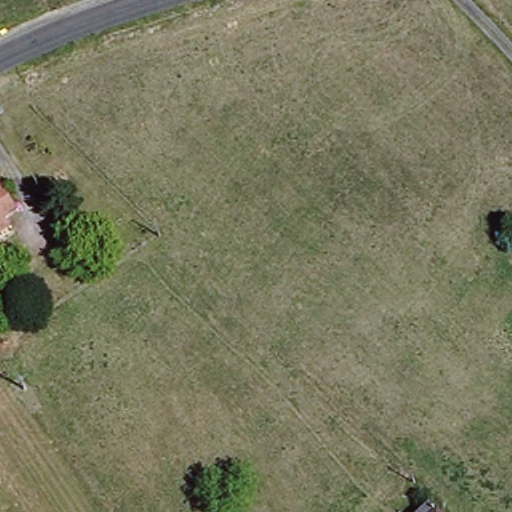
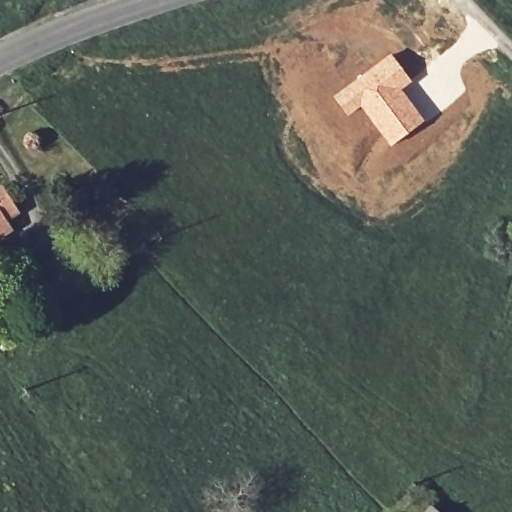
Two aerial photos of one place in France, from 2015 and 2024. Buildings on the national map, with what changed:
new [(392,53),(413,81),(403,89),(426,120),(392,146),(362,105),(349,115),(335,95),(392,53)]
unchanged [(20,211),(9,221),(13,230),(0,238),(0,187),(3,185),(20,211)]
unchanged [(435,512),(424,512),(430,506),(435,512)]

